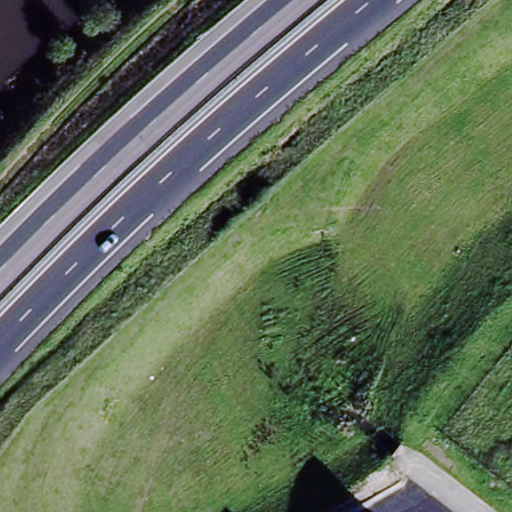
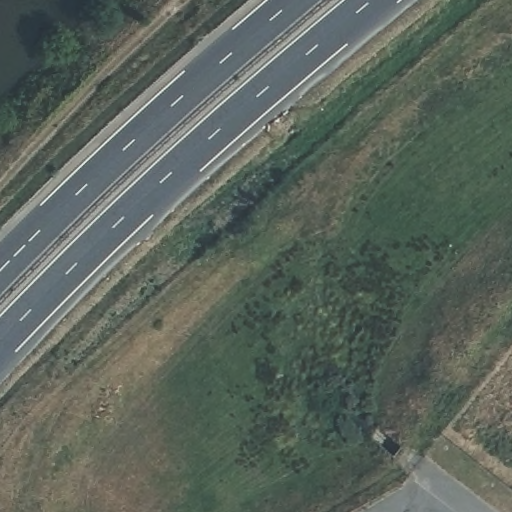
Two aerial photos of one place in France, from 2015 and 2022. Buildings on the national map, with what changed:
[]

